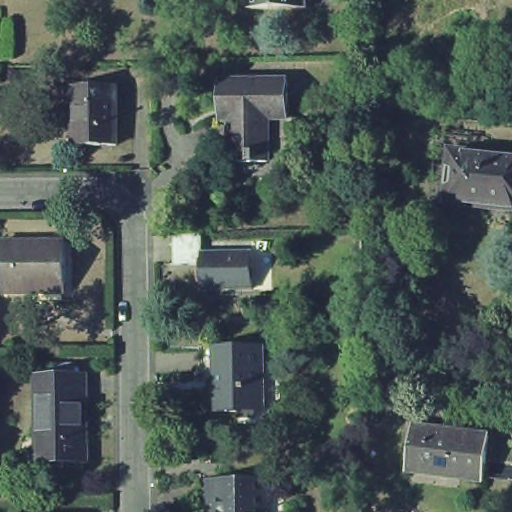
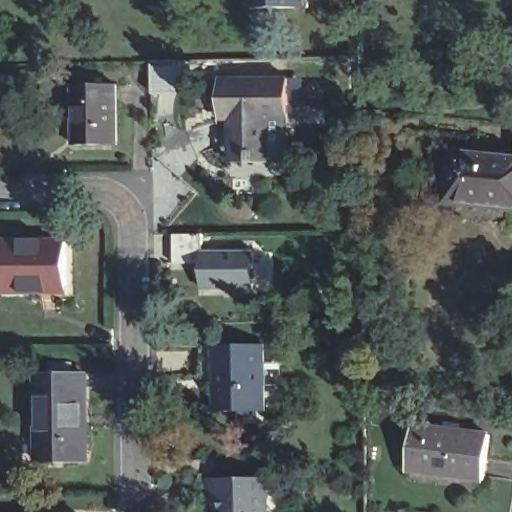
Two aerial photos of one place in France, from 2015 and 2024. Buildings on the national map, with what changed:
unchanged [(242,8),(242,0),(300,0),(300,6),(242,8)]
unchanged [(21,29),(22,55),(10,55),(10,29),(21,29)]
unchanged [(282,79),(283,178),(220,178),(218,80),(282,79)]
unchanged [(110,86),(110,145),(67,146),(67,86),(110,86)]
unchanged [(386,93),(394,104),(375,120),(370,113),(370,95),(386,93)]
unchanged [(476,133),(475,144),(493,145),(492,153),(512,155),(512,220),(435,211),(444,130),(476,133)]
unchanged [(56,240),(57,296),(17,297),(17,293),(0,293),(0,240),(56,240)]
unchanged [(194,243),(195,260),(245,260),(245,298),(195,298),(194,273),(165,273),(165,243),(194,243)]
unchanged [(268,345),(267,347),(265,347),(266,410),(269,410),(269,412),(215,413),(215,411),(218,411),(218,381),(205,381),(204,346),(268,345)]
unchanged [(90,465),(40,466),(38,381),(55,381),(55,370),(75,370),(75,380),(89,380),(90,465)]
unchanged [(412,429),(488,439),(482,484),(406,473),(412,429)]
unchanged [(247,483),(247,512),(199,512),(198,510),(181,510),(181,483),(247,483)]

